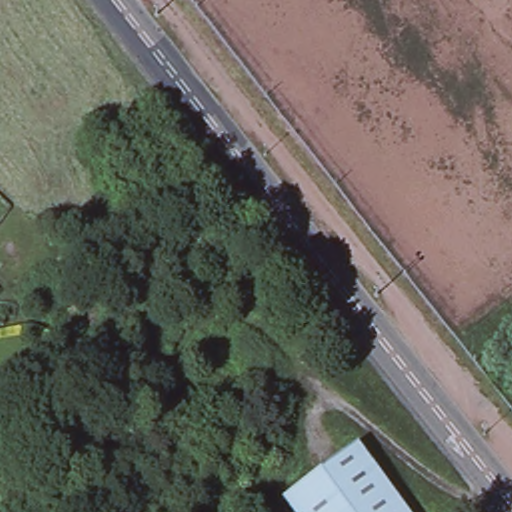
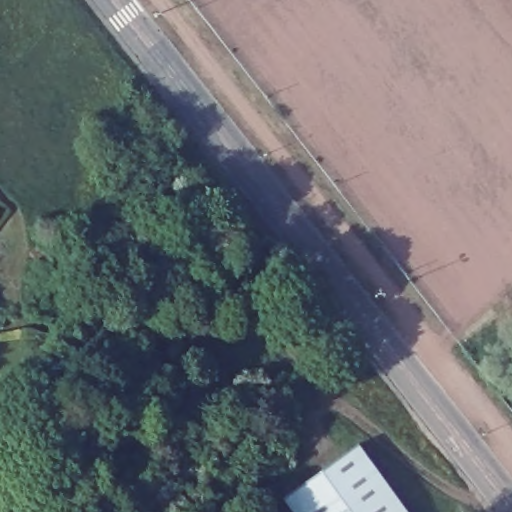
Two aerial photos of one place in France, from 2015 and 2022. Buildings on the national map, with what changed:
unchanged [(280,501),(355,447),(403,512),(288,512),(280,501)]

